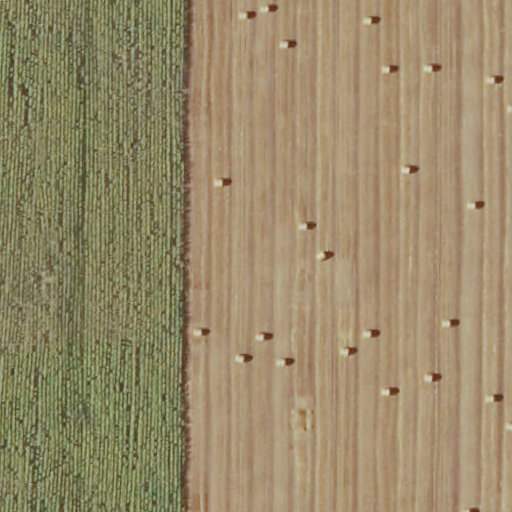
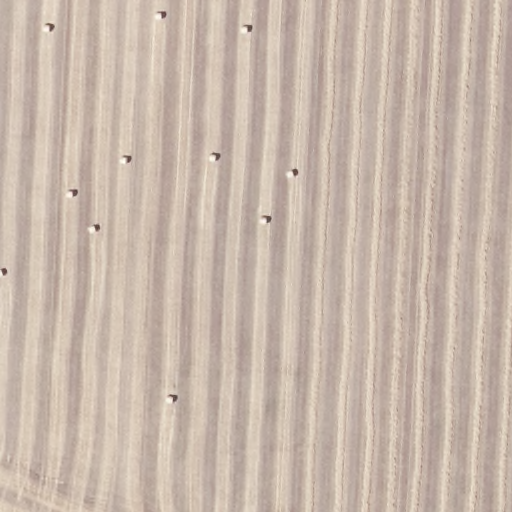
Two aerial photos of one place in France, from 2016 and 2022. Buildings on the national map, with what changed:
[]

